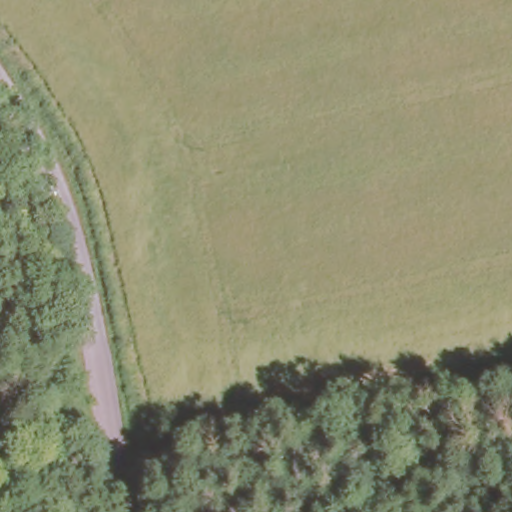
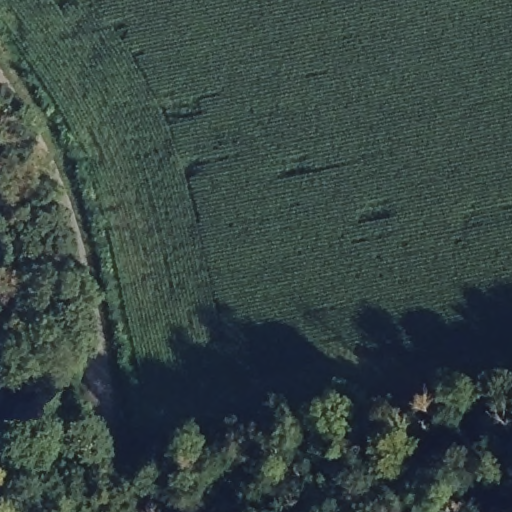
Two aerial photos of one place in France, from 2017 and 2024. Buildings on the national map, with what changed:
[]

